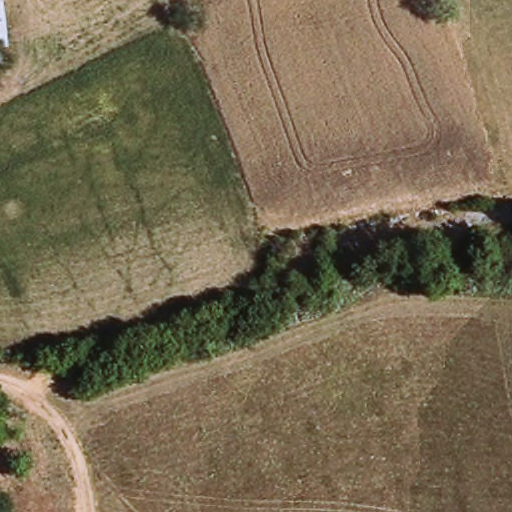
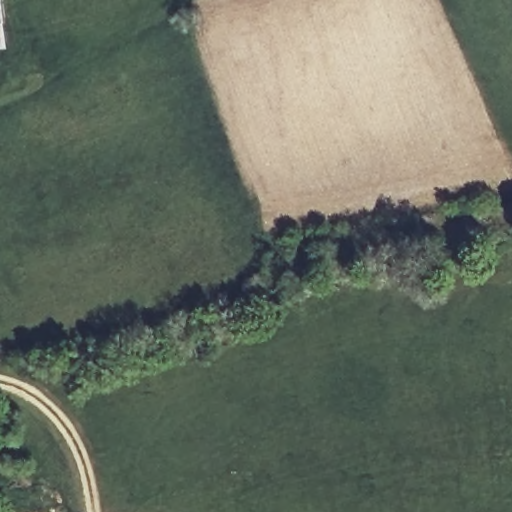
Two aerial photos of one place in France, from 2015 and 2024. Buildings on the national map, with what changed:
unchanged [(7,16),(12,44),(0,46),(0,18),(7,16)]

